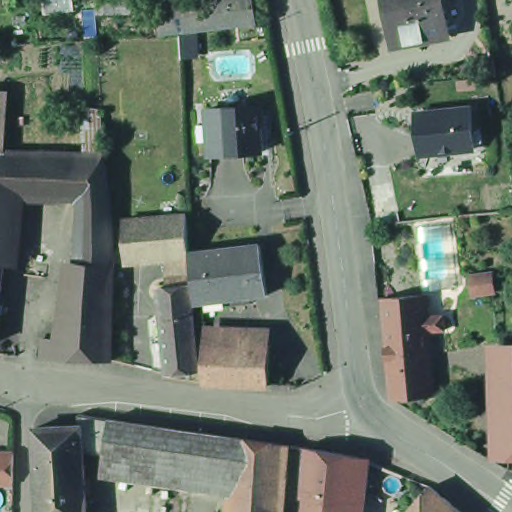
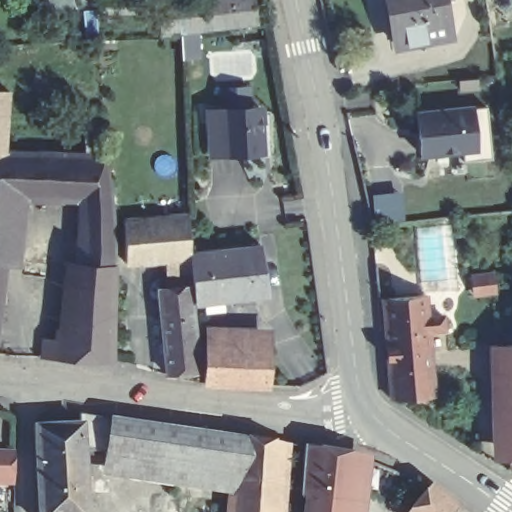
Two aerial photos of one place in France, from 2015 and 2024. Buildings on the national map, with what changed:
unchanged [(196,16),(195,0),(261,0),(262,6),(223,12),(196,16)]
unchanged [(398,43),(389,0),(443,0),(449,34),(398,43)]
unchanged [(0,146),(0,86),(13,87),(8,146),(0,146)]
unchanged [(228,101),(267,99),(268,154),(228,153),(228,101)]
unchanged [(473,105),(477,151),(419,157),(413,111),(473,105)]
unchanged [(8,146),(108,150),(110,156),(115,192),(88,192),(13,191),(4,258),(0,258),(0,146),(8,146)]
unchanged [(119,255),(116,355),(44,351),(45,332),(67,333),(78,258),(88,192),(115,192),(119,255)]
unchanged [(163,282),(172,280),(171,255),(129,256),(127,214),(192,210),(193,239),(193,246),(194,249),(245,240),(251,290),(203,296),(194,253),(198,277),(196,277),(204,365),(171,368),(163,282)]
unchanged [(266,237),(274,288),(251,290),(245,240),(266,237)]
unchanged [(4,258),(9,259),(0,321),(0,258),(4,258)]
unchanged [(391,391),(386,322),(384,291),(427,290),(428,311),(446,311),(446,325),(429,325),(434,389),(396,391),(391,391)]
unchanged [(266,380),(208,376),(211,335),(275,338),(274,380),(266,380)]
unchanged [(490,337),(512,336),(512,452),(494,452),(490,337)]
unchanged [(33,422),(79,420),(79,407),(110,412),(233,430),(231,466),(105,450),(84,447),(88,512),(39,512),(33,422)]
unchanged [(231,466),(233,430),(288,439),(283,512),(228,512),(231,466)]
unchanged [(304,446),(361,455),(356,501),(308,495),(300,495),(304,446)]
unchanged [(23,452),(23,482),(0,482),(0,452),(23,452)]
unchanged [(420,493),(414,490),(405,485),(412,470),(432,478),(472,512),(405,512),(420,493)]
unchanged [(306,503),(308,495),(356,501),(355,508),(355,512),(305,512),(306,503)]

